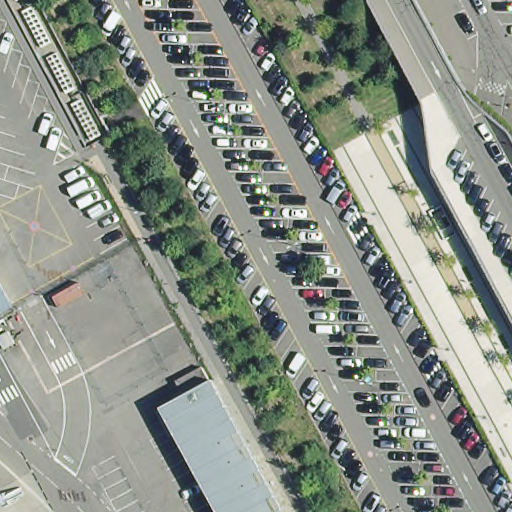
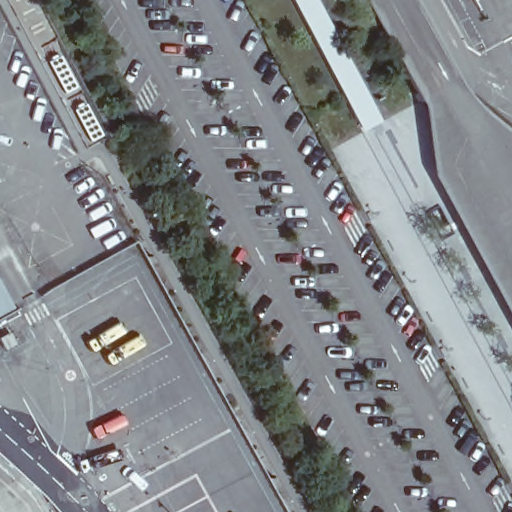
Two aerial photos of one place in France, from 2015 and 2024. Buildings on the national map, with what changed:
unchanged [(0,322),(0,307),(2,305),(8,317),(0,322)]
demolished [(169,405),(221,374),(286,512),(225,512),(169,405)]

